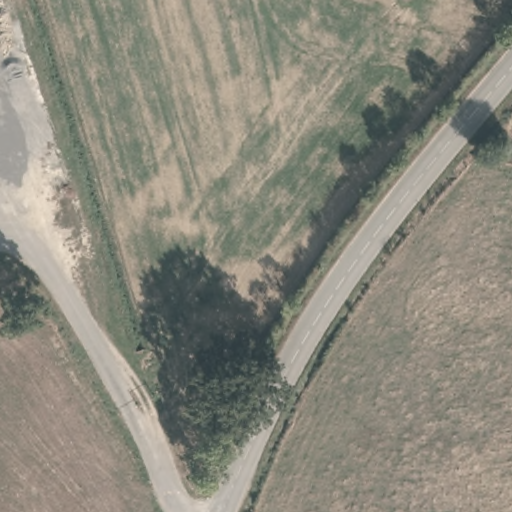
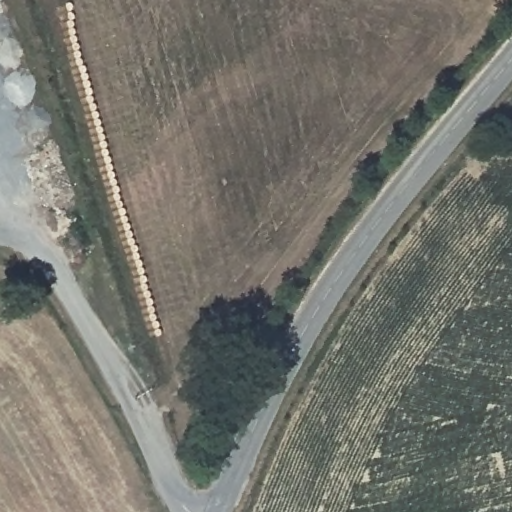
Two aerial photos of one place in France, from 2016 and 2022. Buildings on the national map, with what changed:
[]

